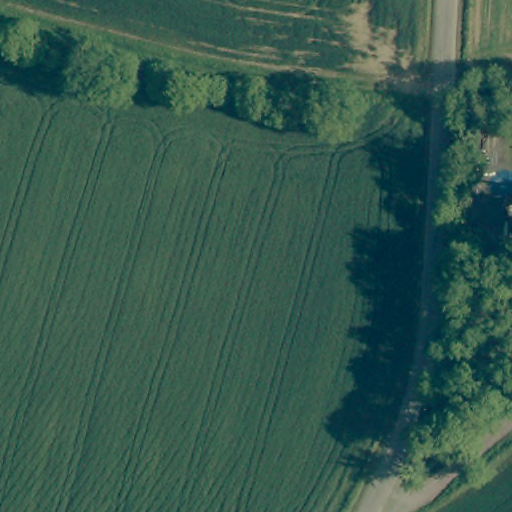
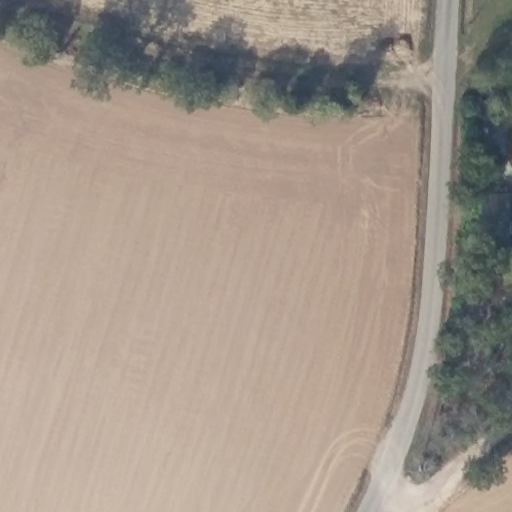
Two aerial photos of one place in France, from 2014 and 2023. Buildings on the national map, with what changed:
unchanged [(506,197),(485,197),(485,203),(473,203),(475,172),(506,171),(506,197)]

